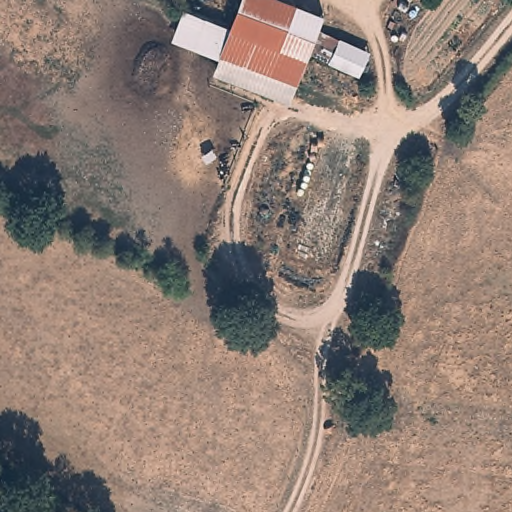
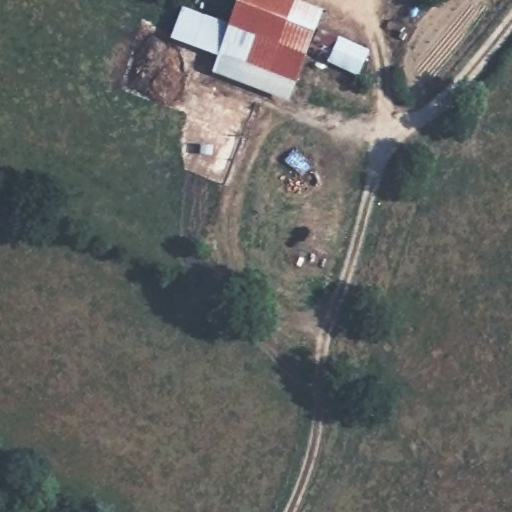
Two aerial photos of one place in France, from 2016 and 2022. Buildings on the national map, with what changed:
unchanged [(227,32),(239,0),(271,0),(319,18),(304,61),(227,32)]
unchanged [(180,15),(227,32),(217,62),(169,44),(180,15)]
unchanged [(322,28),(371,50),(361,72),(311,52),(322,28)]
unchanged [(212,78),(217,62),(227,32),(304,61),(289,104),(212,78)]

